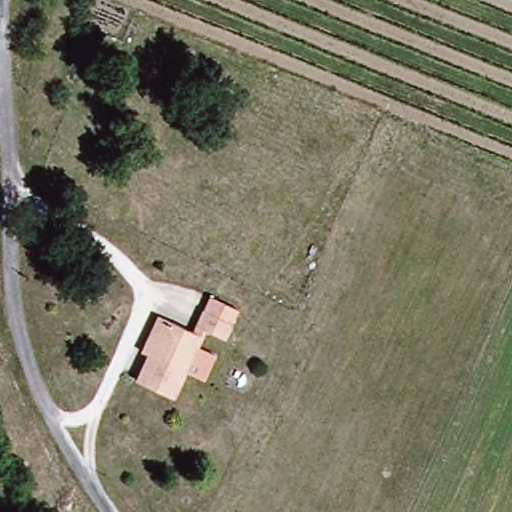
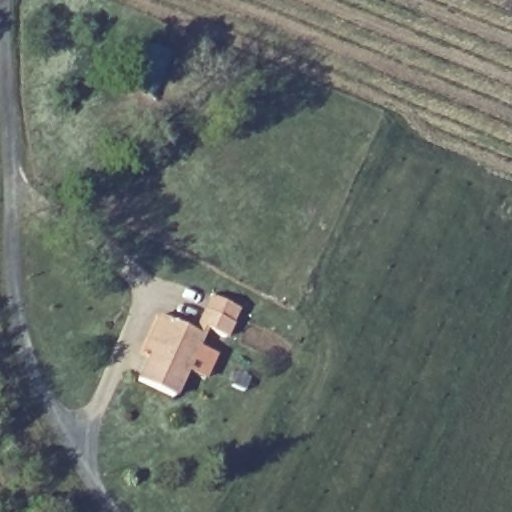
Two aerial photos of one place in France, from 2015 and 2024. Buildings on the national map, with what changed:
unchanged [(226,338),(195,325),(207,295),(238,308),(226,338)]
unchanged [(187,364),(173,396),(136,379),(165,317),(200,333),(197,342),(210,348),(200,369),(187,364)]

